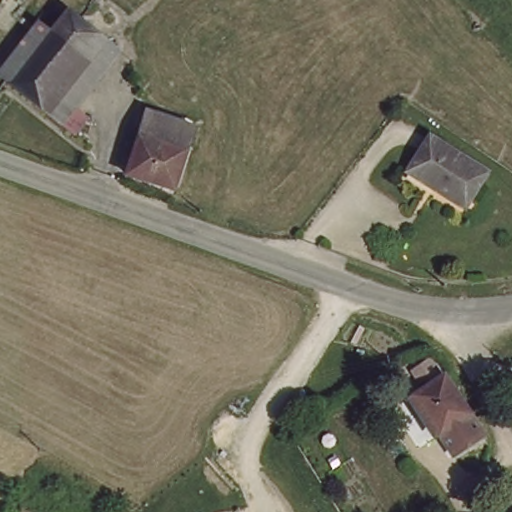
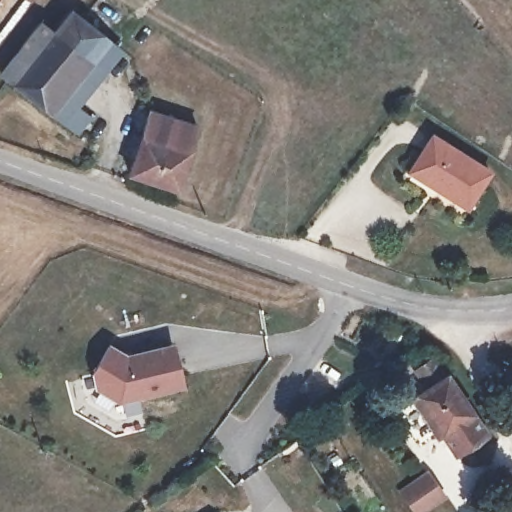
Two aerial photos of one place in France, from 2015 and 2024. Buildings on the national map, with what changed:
unchanged [(72,5),(108,34),(49,107),(14,78),(54,28),(72,5)]
unchanged [(0,66),(0,64),(39,16),(54,28),(14,78),(0,66)]
unchanged [(75,128),(61,116),(49,107),(108,34),(121,45),(74,101),(88,113),(75,128)]
unchanged [(128,173),(150,110),(194,126),(173,189),(128,173)]
unchanged [(437,128),(492,169),(467,204),(440,184),(412,164),(418,155),(437,128)]
new [(94,389),(88,372),(107,344),(124,353),(171,341),(183,387),(119,404),(94,389)]
unchanged [(444,367),(479,421),(448,439),(413,387),(444,367)]
new [(424,469),(445,497),(424,512),(411,512),(396,490),(424,469)]

